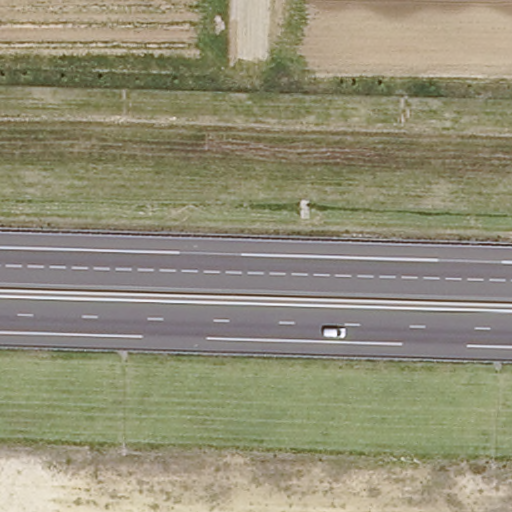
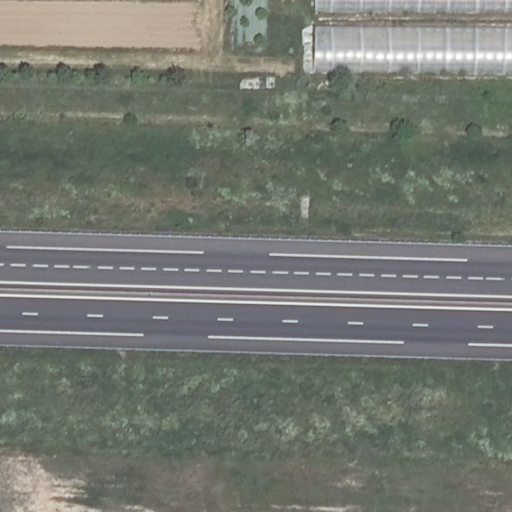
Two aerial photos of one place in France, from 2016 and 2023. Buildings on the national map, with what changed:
new [(512,12),(315,10),(316,0),(512,0),(512,12)]
new [(512,73),(317,74),(317,29),(512,33),(512,73)]

